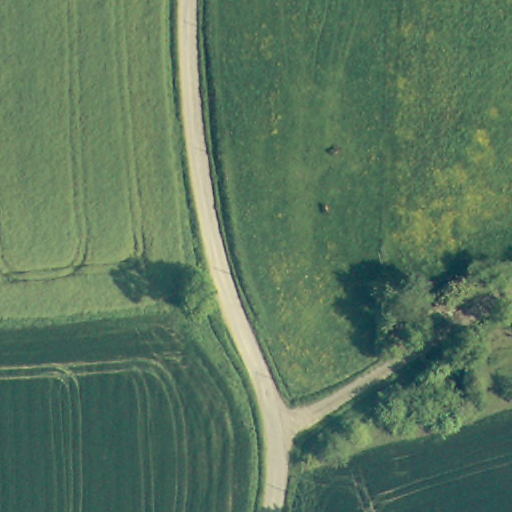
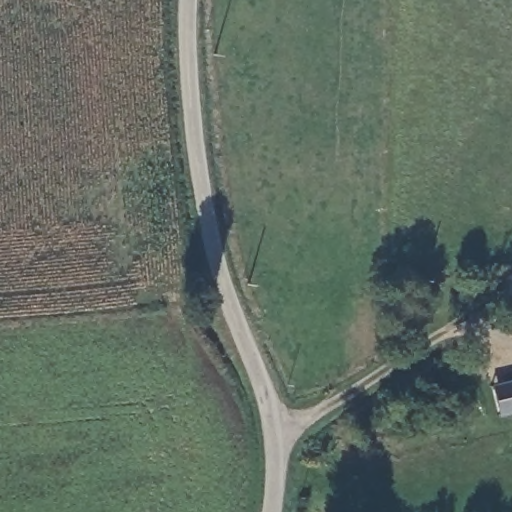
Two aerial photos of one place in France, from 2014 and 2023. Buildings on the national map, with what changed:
unchanged [(442,308),(438,328),(417,324),(421,304),(442,308)]
new [(512,413),(497,417),(490,384),(512,380),(512,413)]

